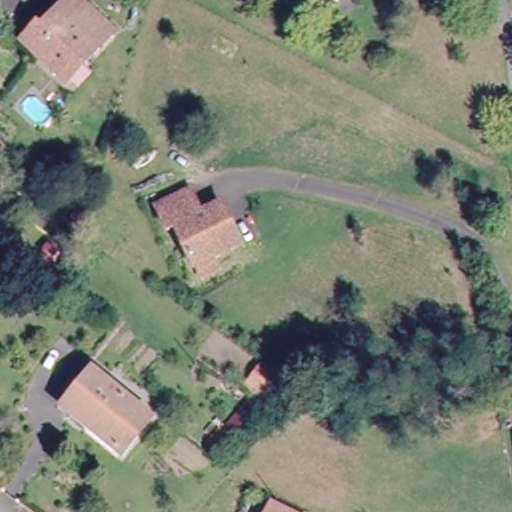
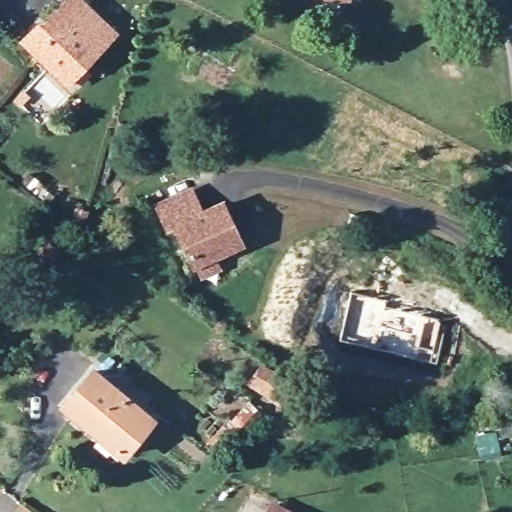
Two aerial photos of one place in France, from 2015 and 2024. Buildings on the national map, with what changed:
unchanged [(24,41),(38,27),(42,30),(60,11),(70,0),(79,0),(90,10),(115,34),(98,51),(68,82),(64,79),(24,41)]
unchanged [(195,273),(190,262),(171,222),(163,226),(152,202),(186,186),(197,209),(211,202),(217,199),(226,219),(236,240),(210,252),(215,263),(195,273)]
unchanged [(82,226),(73,223),(78,209),(87,212),(82,226)]
new [(352,291),(386,299),(385,304),(443,317),(440,331),(443,332),(436,362),(340,342),(352,291)]
unchanged [(280,402),(250,381),(262,365),(292,387),(280,402)]
unchanged [(123,455),(64,407),(93,372),(152,419),(123,455)]
unchanged [(275,498),(303,512),(269,512),(275,498)]

